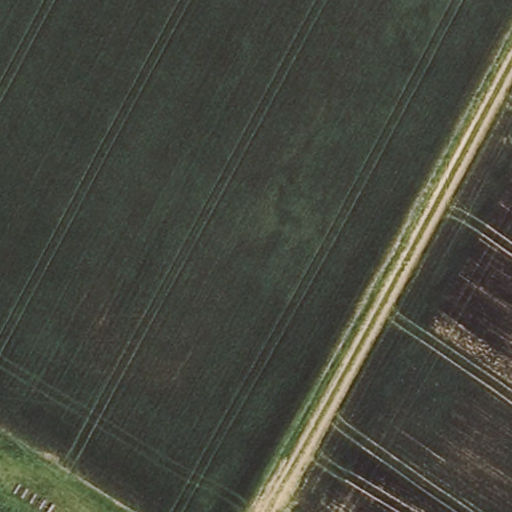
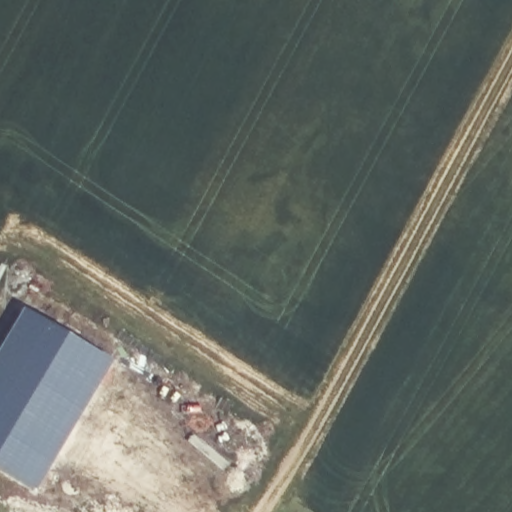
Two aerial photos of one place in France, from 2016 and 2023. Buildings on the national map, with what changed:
new [(23,313),(111,363),(35,492),(0,471),(0,351),(23,313)]

